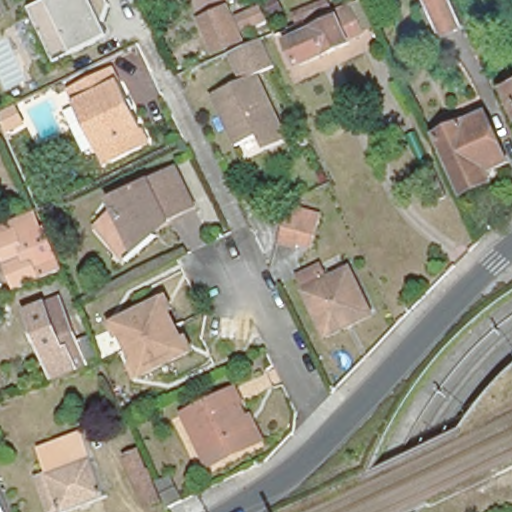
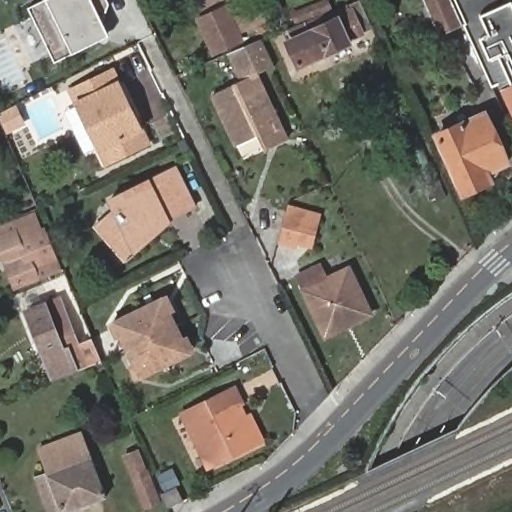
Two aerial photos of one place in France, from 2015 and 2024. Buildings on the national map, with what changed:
unchanged [(110,38),(102,42),(95,46),(55,65),(29,10),(51,0),(107,0),(110,8),(104,25),(106,30),(110,38)]
unchanged [(224,0),(231,13),(258,0),(270,17),(242,31),(245,37),(211,50),(195,12),(224,0)]
unchanged [(424,9),(431,5),(429,0),(452,0),(463,25),(445,34),(438,20),(431,24),(424,9)]
new [(492,88),(463,24),(465,23),(455,0),(511,0),(512,0),(512,113),(501,89),(502,88),(500,84),(492,88)]
unchanged [(286,31),(346,6),(350,14),(353,12),(362,34),(347,40),(350,45),(326,56),(325,54),(298,66),(287,43),(291,41),(286,31)]
unchanged [(255,36),(268,61),(239,75),(226,50),(255,36)]
unchanged [(167,56),(195,43),(201,57),(175,70),(167,56)]
demolished [(512,53),(512,79),(502,57),(512,53)]
unchanged [(260,135),(258,133),(235,144),(211,91),(256,70),(287,136),(283,138),(265,147),(260,135)]
unchanged [(112,172),(75,96),(116,75),(132,109),(137,119),(153,153),(112,172)]
unchanged [(15,104),(28,128),(0,141),(0,112),(15,104)]
unchanged [(437,136),(485,114),(508,162),(493,169),(489,179),(491,182),(464,194),(437,136)]
unchanged [(151,241),(134,257),(101,222),(120,206),(114,195),(181,163),(200,205),(184,213),(156,225),(160,233),(151,241)]
unchanged [(324,211),(312,254),(276,247),(290,206),(324,211)]
unchanged [(0,241),(0,232),(20,223),(19,217),(32,211),(40,227),(31,231),(42,259),(55,254),(60,266),(16,283),(0,241)]
unchanged [(305,293),(298,278),(323,266),(330,281),(350,272),(371,316),(327,337),(305,293)]
unchanged [(134,358),(140,355),(126,326),(119,330),(113,317),(120,314),(166,291),(171,289),(177,301),(172,303),(186,332),(191,330),(197,342),(192,344),(146,367),(140,370),(134,358)]
unchanged [(47,370),(21,306),(40,299),(48,319),(62,314),(70,336),(85,330),(95,353),(47,370)]
unchanged [(216,466),(190,411),(241,388),(265,443),(216,466)]
unchanged [(45,471),(36,447),(81,431),(105,492),(60,511),(59,506),(48,509),(35,474),(45,471)]
unchanged [(125,460),(137,454),(159,504),(146,510),(125,460)]
unchanged [(160,493),(161,493),(164,492),(168,490),(175,487),(182,503),(169,510),(160,493)]

